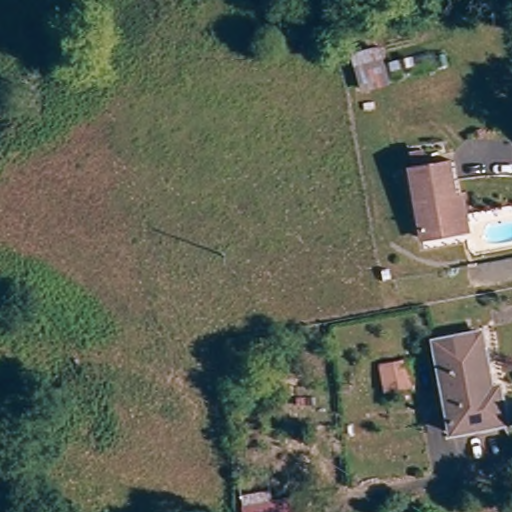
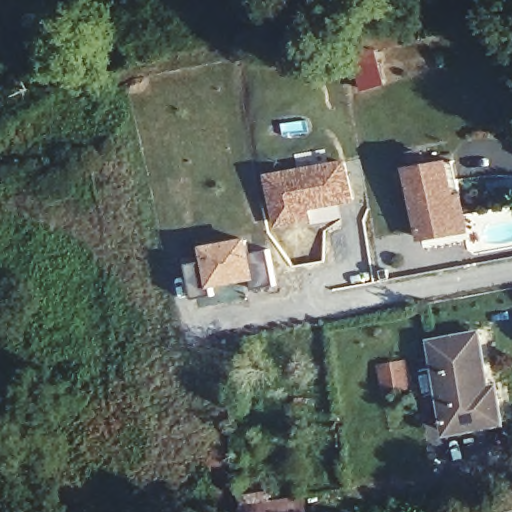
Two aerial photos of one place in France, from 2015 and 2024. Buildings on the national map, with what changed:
new [(310,210),(312,220),(280,227),(270,179),(348,163),(355,201),(338,204),(331,206),(310,210)]
unchanged [(451,232),(426,236),(413,173),(445,168),(452,202),(458,201),(464,229),(451,232)]
new [(211,264),(208,252),(250,244),(253,256),(273,252),(280,288),(258,292),(256,280),(216,288),(219,299),(198,303),(191,268),(211,264)]
unchanged [(506,389),(512,419),(455,428),(438,339),(482,332),(491,381),(504,379),(506,389)]
unchanged [(270,489),(272,502),(308,494),(312,512),(243,512),(240,493),(270,489)]

